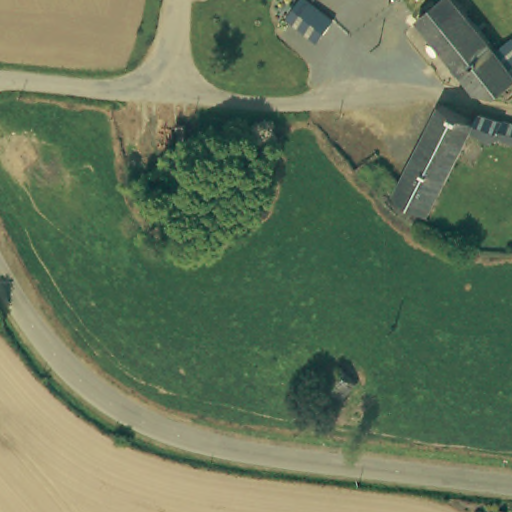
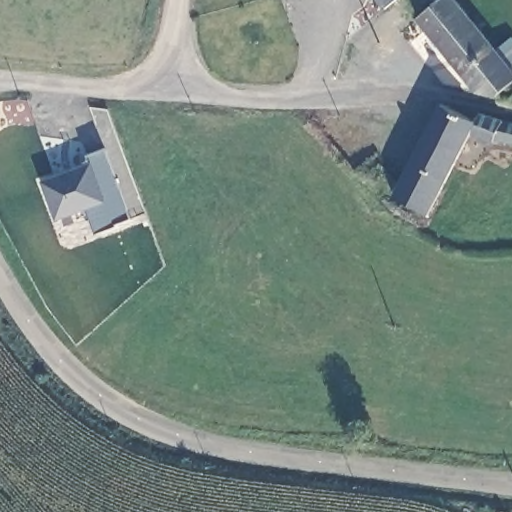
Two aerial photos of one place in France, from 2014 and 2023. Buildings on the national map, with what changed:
unchanged [(433,0),(461,0),(475,17),(443,43),(417,11),(433,0)]
unchanged [(512,34),(512,90),(508,93),(479,88),(443,43),(475,17),(497,45),(512,34)]
unchanged [(433,213),(399,195),(403,183),(442,106),(479,120),(433,213)]
unchanged [(501,139),(506,115),(512,115),(512,141),(501,139)]
new [(131,218),(116,224),(118,227),(96,234),(87,210),(55,220),(41,182),(91,164),(88,155),(104,149),(131,218)]

